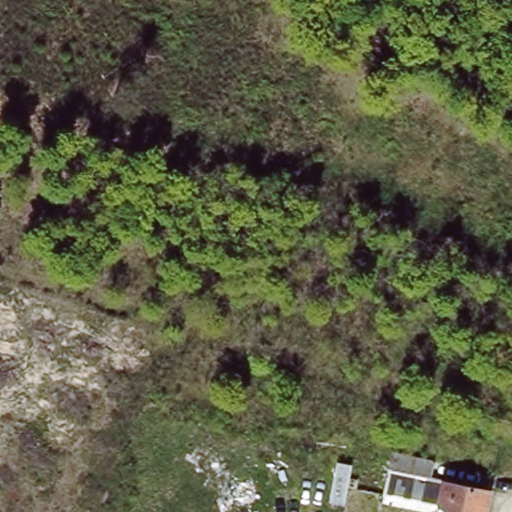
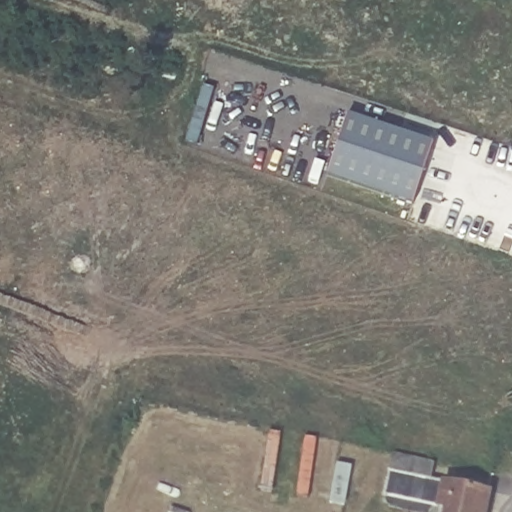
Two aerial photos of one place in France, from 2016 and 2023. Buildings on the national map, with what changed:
new [(413,204),(326,178),(348,114),(435,143),(413,204)]
unchanged [(437,458),(435,477),(493,486),(488,512),(413,512),(391,508),(399,471),(389,469),(393,451),(437,458)]

